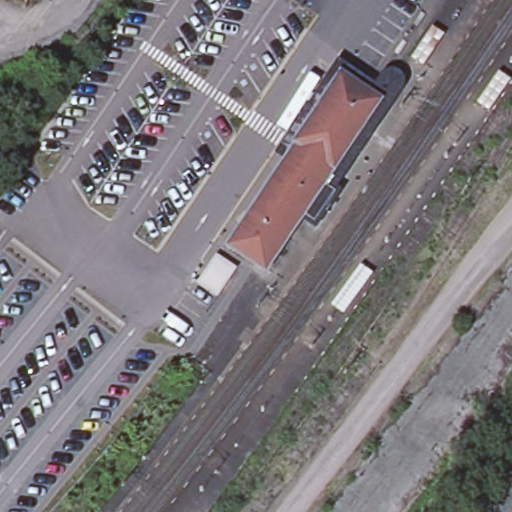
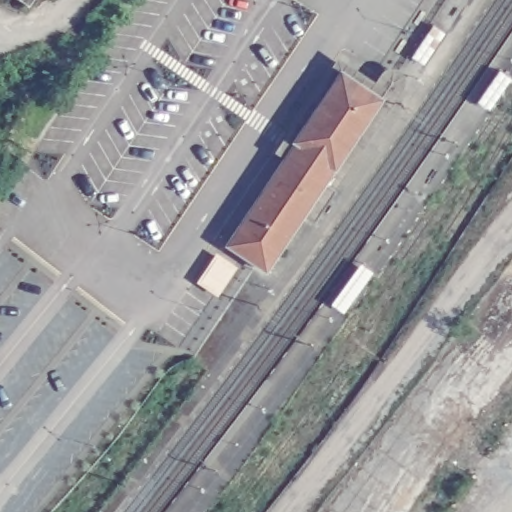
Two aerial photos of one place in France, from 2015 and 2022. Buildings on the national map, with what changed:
unchanged [(23,0),(28,0),(26,3),(23,0)]
unchanged [(445,32),(423,64),(411,56),(432,24),(445,32)]
unchanged [(488,109),(476,101),(498,69),(510,77),(488,109)]
unchanged [(314,220),(303,213),(265,270),(226,244),(295,141),(293,140),(340,70),(381,97),(324,182),(335,189),(314,220)]
unchanged [(346,308),(337,302),(361,269),(370,276),(346,308)]

